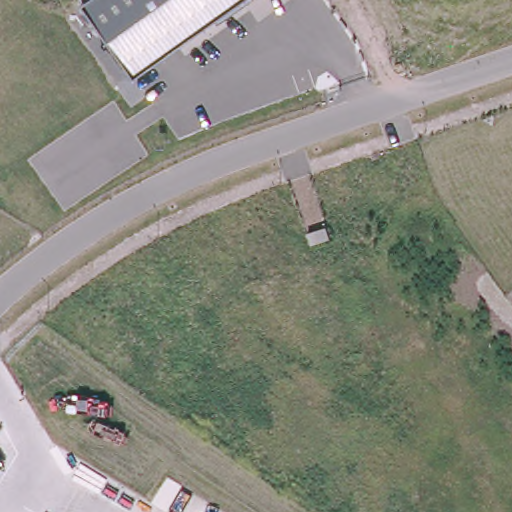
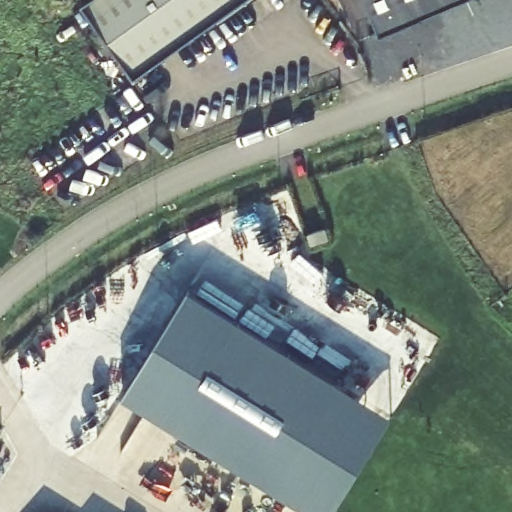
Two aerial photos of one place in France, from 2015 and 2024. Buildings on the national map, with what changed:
unchanged [(83,4),(89,0),(243,0),(134,76),(83,4)]
new [(456,0),(382,31),(368,0),(456,0)]
new [(189,290),(392,418),(333,512),(312,512),(122,397),(189,290)]

